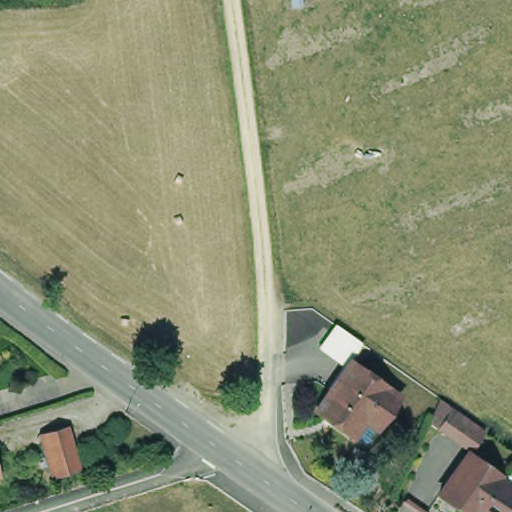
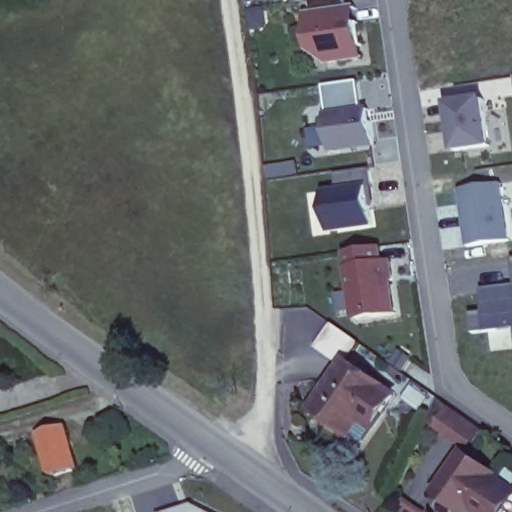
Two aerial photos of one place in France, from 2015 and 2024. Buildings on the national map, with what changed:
new [(325,59),(310,47),(305,12),(309,11),(307,0),(343,0),(344,6),(354,5),(354,6),(347,8),(348,21),(356,20),(356,21),(355,21),(358,41),(359,41),(359,43),(358,43),(360,54),(353,55),(325,59)]
new [(368,119),(372,141),(329,147),(321,83),(355,78),(360,108),(363,107),(367,106),(368,119)]
new [(490,99),(496,144),(460,150),(453,101),(490,99)]
new [(332,170),(367,165),(370,184),(365,185),(370,222),(327,228),(322,190),(335,188),(332,170)]
new [(470,248),(464,190),(512,184),(512,242),(470,248)]
new [(354,322),(345,252),(385,247),(387,262),(395,261),(398,283),(395,284),(400,316),(354,322)]
new [(470,313),(485,311),(483,289),(512,285),(512,337),(473,335),(470,313)]
unchanged [(362,411),(352,428),(329,411),(330,408),(318,400),(344,358),(391,388),(381,405),(374,419),(362,411)]
unchanged [(467,444),(426,413),(434,397),(479,429),(467,444)]
unchanged [(51,472),(38,431),(65,422),(78,464),(51,472)]
unchanged [(455,506),(436,489),(466,452),(492,472),(489,475),(509,490),(491,512),(476,512),(466,503),(460,509),(455,506)]
unchanged [(196,511),(197,512),(192,512),(196,511)]

